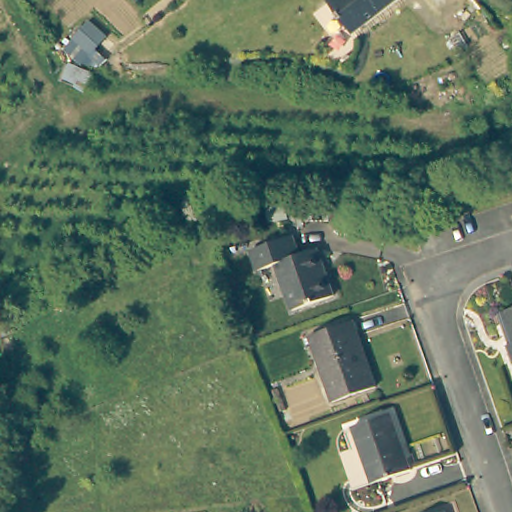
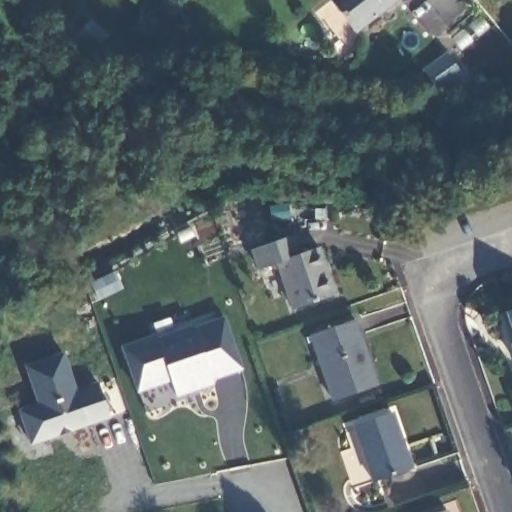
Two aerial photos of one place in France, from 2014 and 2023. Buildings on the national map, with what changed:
unchanged [(396,0),(354,32),(330,1),(331,0),(396,0)]
unchanged [(106,37),(93,52),(76,37),(89,22),(106,37)]
unchanged [(288,305),(272,258),(254,265),(247,245),(289,231),(295,249),(313,243),(330,290),(288,305)]
unchanged [(512,303),(512,358),(511,358),(505,340),(510,338),(500,307),(512,303)]
new [(213,380),(216,386),(176,397),(172,385),(135,396),(120,346),(159,332),(160,337),(228,312),(245,368),(213,380)]
unchanged [(328,397),(305,331),(349,315),(372,381),(328,397)]
new [(85,427),(28,446),(18,412),(38,405),(27,367),(65,355),(76,390),(100,381),(111,417),(85,427)]
unchanged [(406,470),(368,482),(349,426),(387,412),(406,470)]
unchanged [(442,512),(435,512),(441,510),(442,512)]

